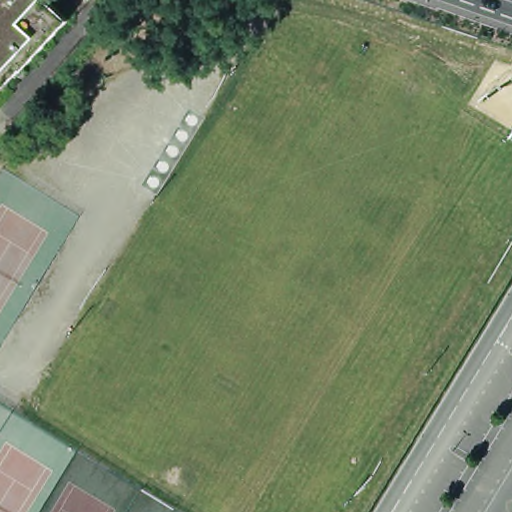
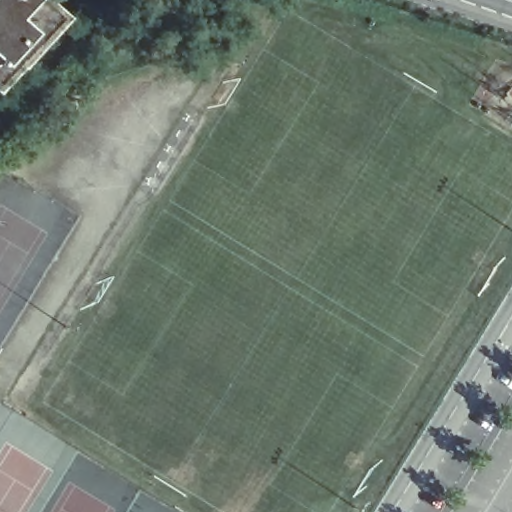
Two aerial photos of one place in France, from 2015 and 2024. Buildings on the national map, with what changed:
unchanged [(28,70),(26,69),(2,96),(0,94),(0,0),(53,0),(74,19),(28,70)]

